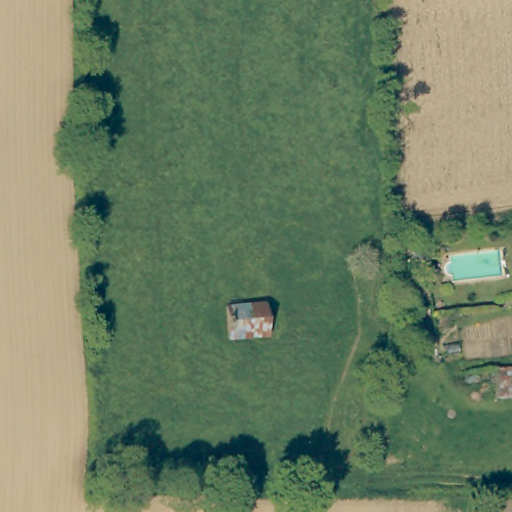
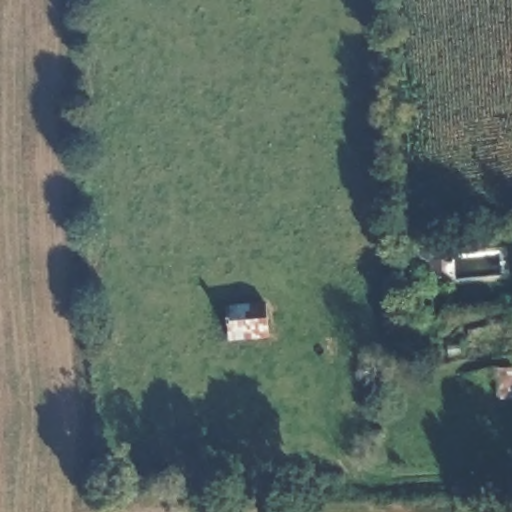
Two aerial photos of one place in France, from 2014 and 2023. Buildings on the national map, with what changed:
unchanged [(419,245),(430,250),(425,262),(413,257),(419,245)]
unchanged [(221,307),(261,304),(263,336),(224,339),(221,307)]
unchanged [(512,369),(512,397),(496,398),(497,368),(512,369)]

